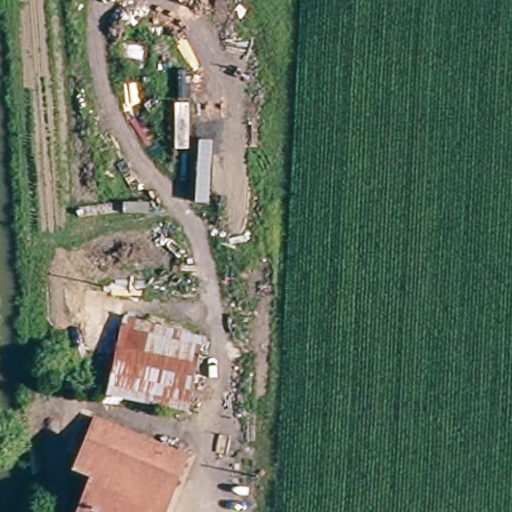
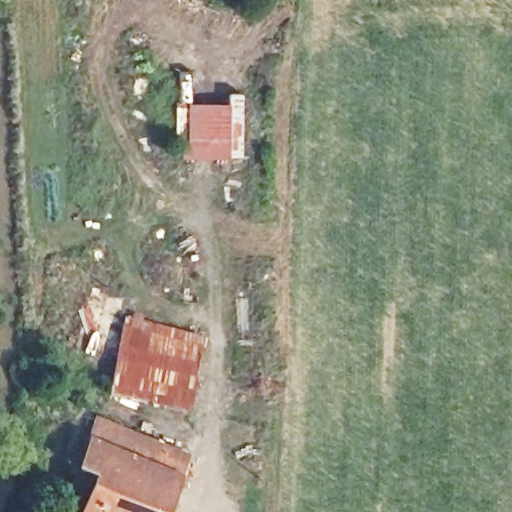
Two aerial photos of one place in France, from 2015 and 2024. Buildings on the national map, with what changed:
new [(230,102),(228,150),(200,150),(200,147),(196,147),(191,103),(230,102)]
unchanged [(109,394),(125,318),(202,340),(186,409),(109,394)]
unchanged [(170,512),(90,512),(102,478),(82,470),(98,425),(170,452),(167,459),(187,466),(170,512)]

